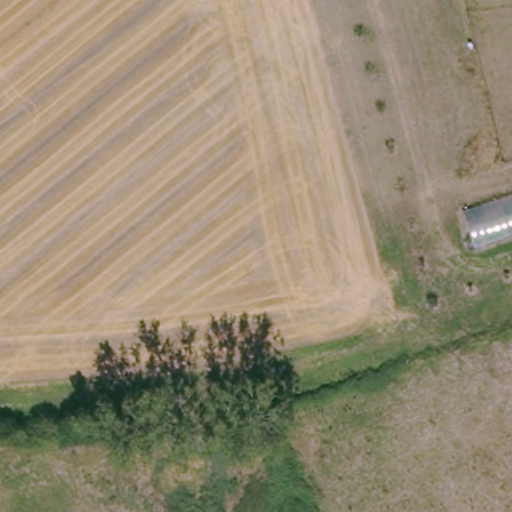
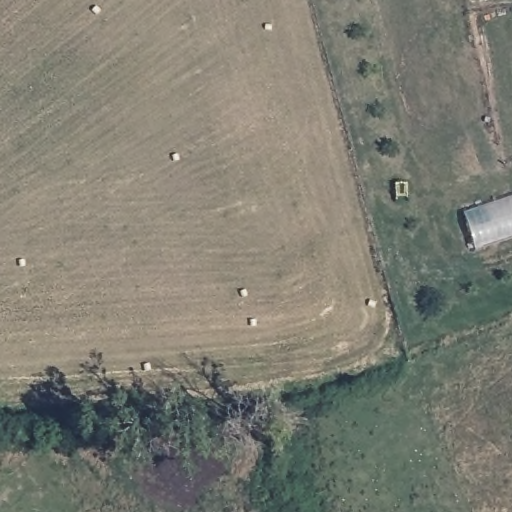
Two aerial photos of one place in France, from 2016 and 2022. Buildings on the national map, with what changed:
unchanged [(467,215),(512,200),(512,236),(478,248),(467,215)]

